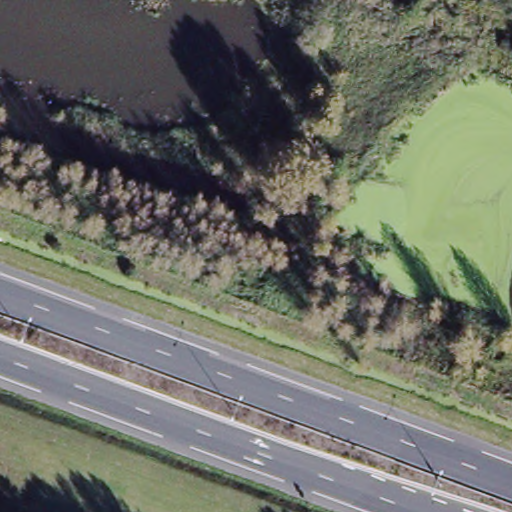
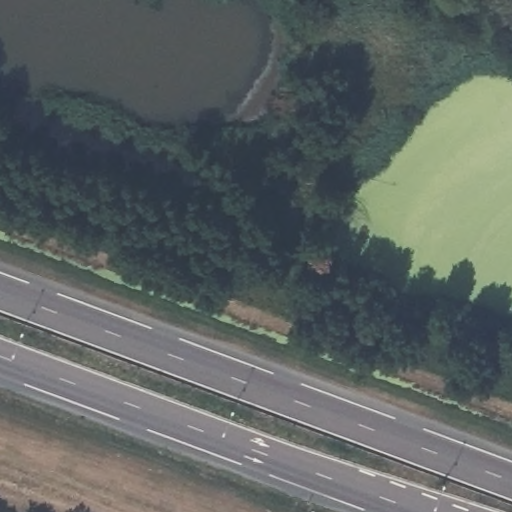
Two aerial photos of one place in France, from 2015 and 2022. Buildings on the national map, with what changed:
[]

